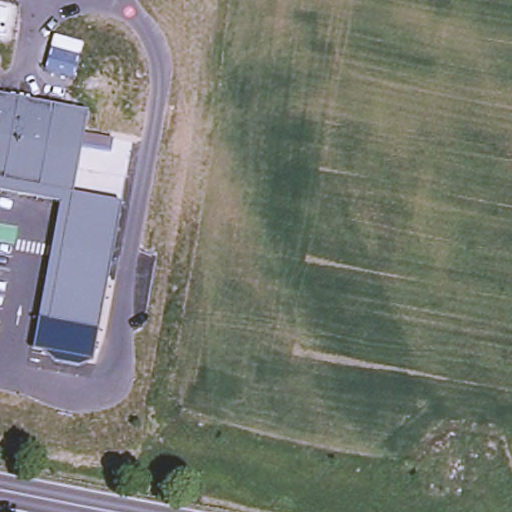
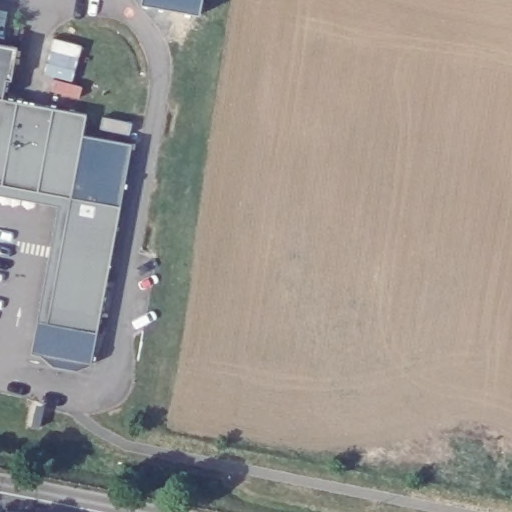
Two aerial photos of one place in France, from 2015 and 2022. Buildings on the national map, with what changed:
new [(143,3),(144,0),(203,0),(200,14),(143,3)]
unchanged [(83,42),(74,81),(44,74),(53,35),(83,42)]
new [(18,46),(13,79),(6,78),(3,98),(0,98),(0,44),(18,46)]
unchanged [(41,355),(32,353),(59,206),(0,195),(0,98),(88,114),(84,136),(71,197),(122,205),(92,364),(78,370),(54,366),(41,355)]
unchanged [(122,205),(71,197),(84,136),(132,144),(122,205)]

